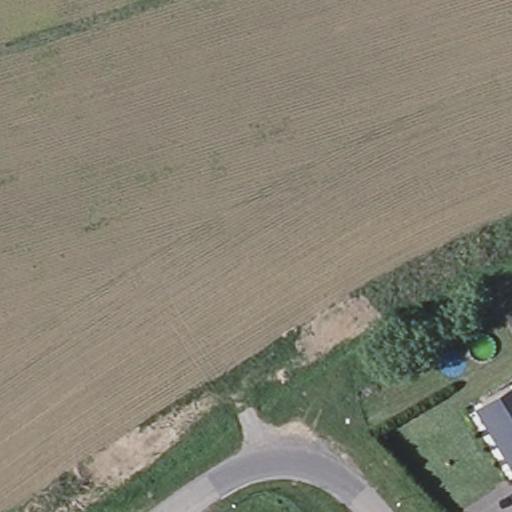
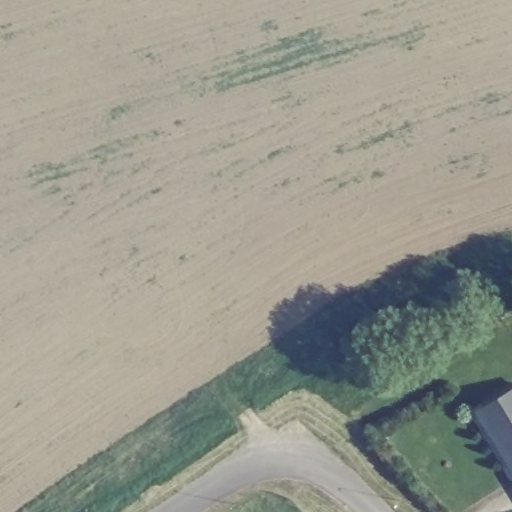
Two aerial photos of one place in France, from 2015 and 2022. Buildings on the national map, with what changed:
unchanged [(485,405),(490,402),(512,390),(512,448),(503,433),(485,405)]

